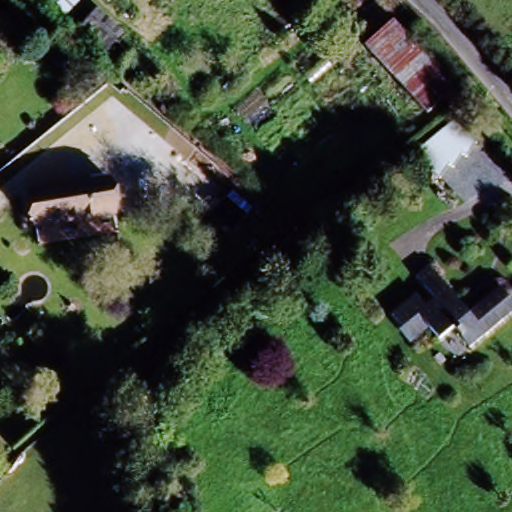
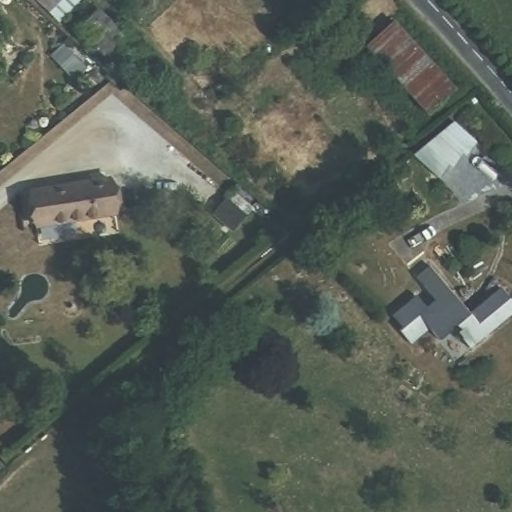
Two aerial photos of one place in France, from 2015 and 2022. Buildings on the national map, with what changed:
unchanged [(313,0),(319,0),(316,3),(313,0)]
unchanged [(94,8),(137,47),(114,71),(74,34),(72,32),(94,8)]
unchanged [(388,22),(450,92),(424,117),(362,47),(388,22)]
unchanged [(457,122),(477,147),(463,162),(460,160),(451,170),(448,169),(436,182),(413,155),(457,122)]
unchanged [(102,179),(105,215),(26,222),(23,187),(102,179)]
unchanged [(397,322),(388,312),(413,293),(426,307),(432,303),(412,280),(431,266),(467,315),(501,290),(512,304),(512,316),(467,350),(452,333),(435,345),(422,332),(407,343),(392,327),(397,322)]

